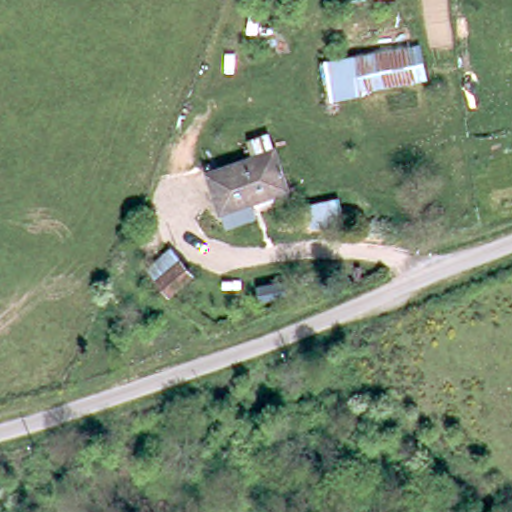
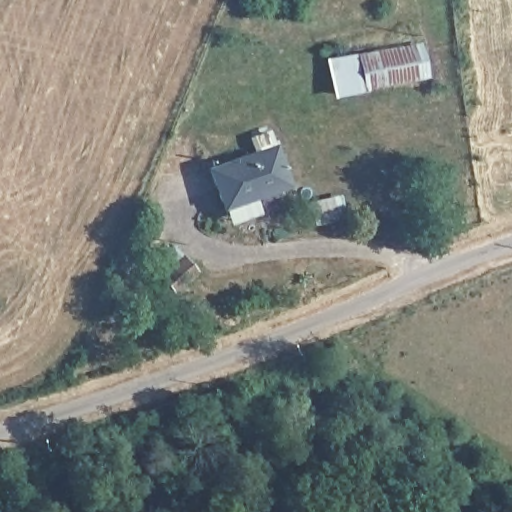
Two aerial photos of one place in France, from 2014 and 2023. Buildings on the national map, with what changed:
unchanged [(355,55),(414,44),(419,81),(359,91),(355,55)]
unchanged [(225,218),(220,204),(208,166),(259,151),(256,139),(275,134),(291,184),(249,195),(252,209),(225,218)]
unchanged [(193,272),(173,291),(158,277),(178,257),(193,272)]

